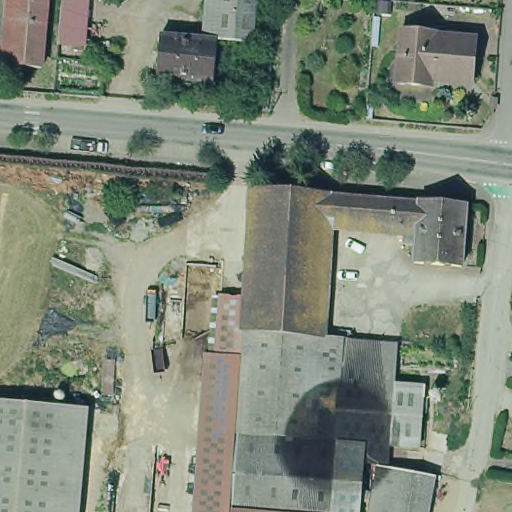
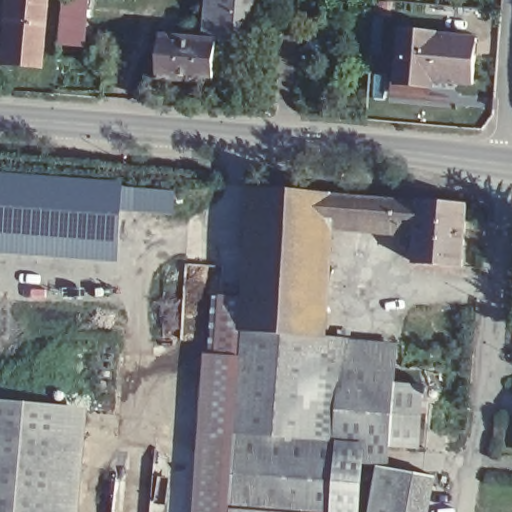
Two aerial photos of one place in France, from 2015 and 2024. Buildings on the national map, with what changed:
unchanged [(8,20),(9,0),(42,0),(40,23),(38,43),(36,66),(4,63),(6,40),(8,20)]
unchanged [(59,42),(62,0),(87,0),(83,44),(59,42)]
unchanged [(209,3),(209,0),(255,0),(254,6),(209,3)]
unchanged [(209,3),(254,6),(251,37),(217,34),(206,34),(209,3)]
unchanged [(431,29),(472,32),(468,77),(427,74),(426,80),(393,78),(397,24),(401,24),(432,26),(431,29)]
unchanged [(159,29),(206,34),(217,34),(213,76),(156,71),(159,29)]
new [(118,182),(114,263),(0,255),(0,173),(118,182)]
unchanged [(411,263),(411,234),(332,230),(324,334),(241,329),(241,296),(240,274),(243,179),(466,199),(459,264),(411,263)]
unchanged [(241,329),(324,334),(399,340),(397,381),(425,382),(420,448),(391,446),(389,463),(434,472),(427,512),(368,512),(377,464),(364,464),(359,512),(195,512),(206,352),(216,352),(219,293),(241,296),(241,329)]
unchanged [(77,512),(0,512),(0,396),(85,401),(77,512)]

